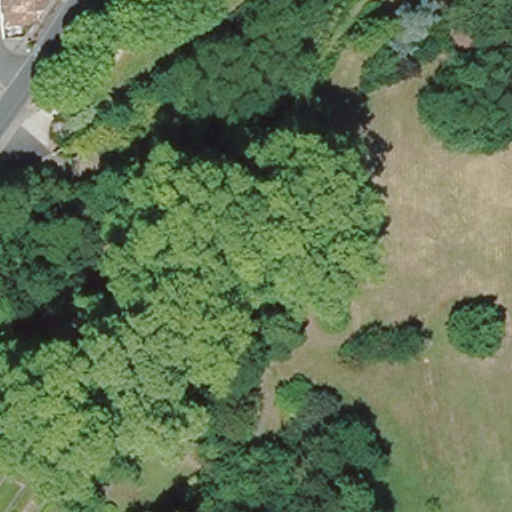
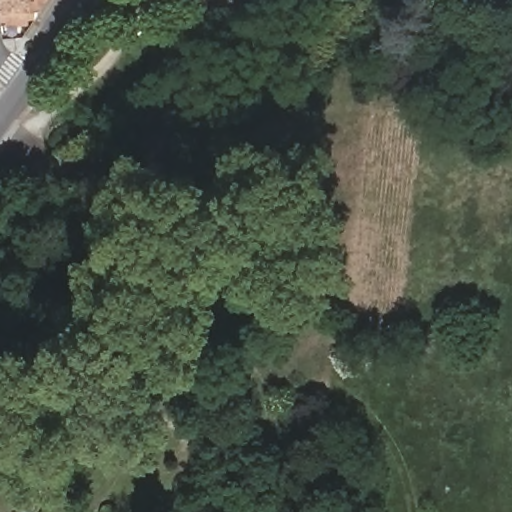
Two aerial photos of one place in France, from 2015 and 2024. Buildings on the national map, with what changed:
unchanged [(3,14),(2,0),(51,0),(44,11),(3,14)]

